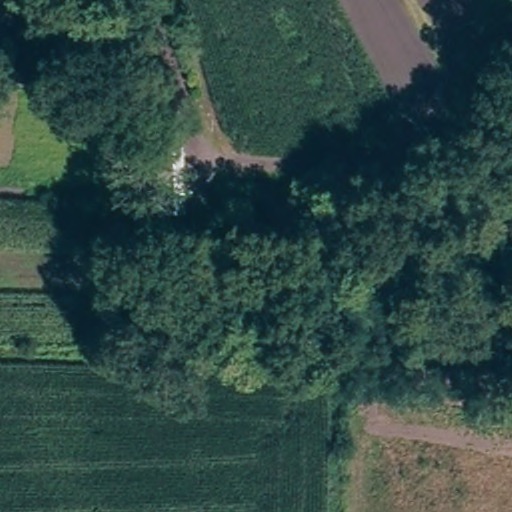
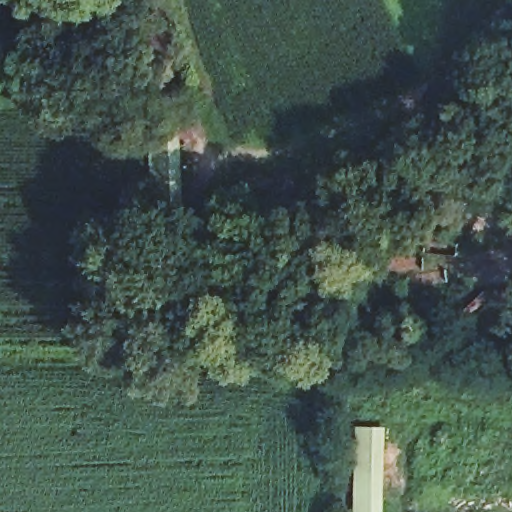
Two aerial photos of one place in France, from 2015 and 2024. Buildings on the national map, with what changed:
new [(385,512),(357,512),(360,426),(386,426),(385,512)]

